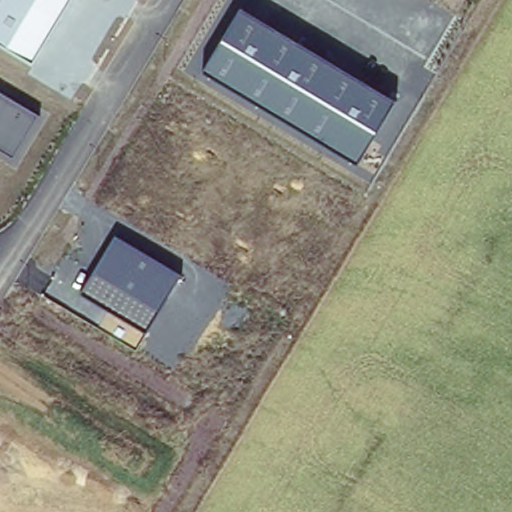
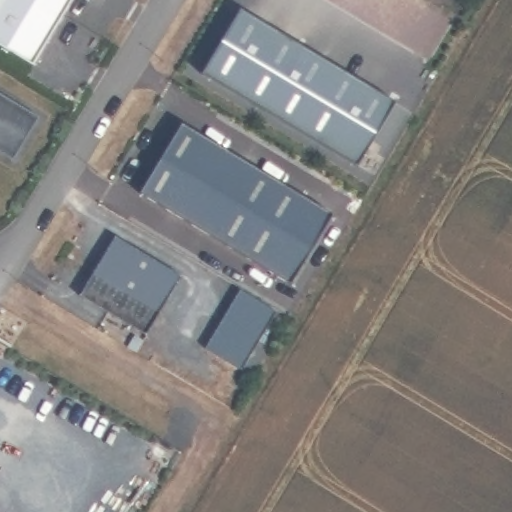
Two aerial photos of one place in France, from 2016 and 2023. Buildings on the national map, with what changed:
unchanged [(0,43),(0,0),(70,0),(32,63),(0,43)]
unchanged [(358,165),(203,73),(242,8),(396,101),(358,165)]
unchanged [(13,160),(0,152),(0,92),(41,116),(13,160)]
new [(181,125),(331,218),(288,287),(138,194),(181,125)]
unchanged [(146,333),(80,294),(115,236),(181,277),(146,333)]
new [(239,368),(203,347),(238,288),(274,310),(239,368)]

